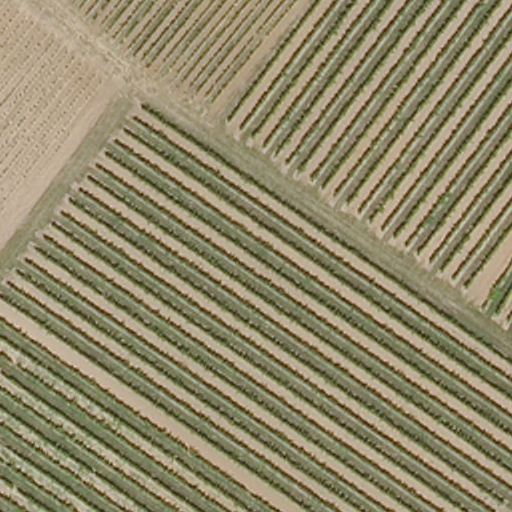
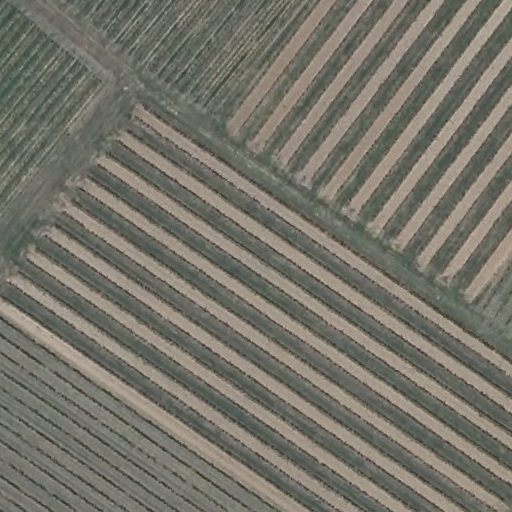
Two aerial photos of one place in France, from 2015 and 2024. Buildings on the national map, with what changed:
[]

